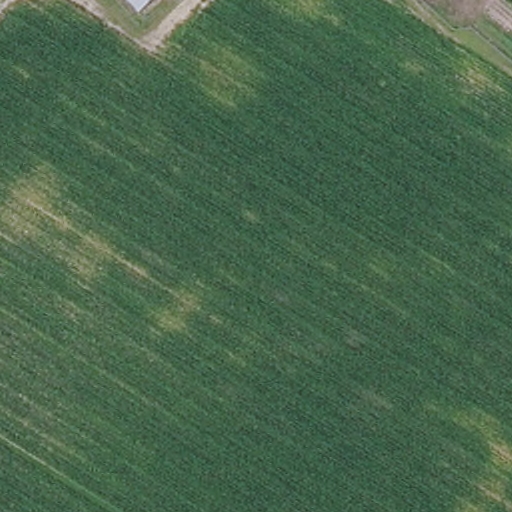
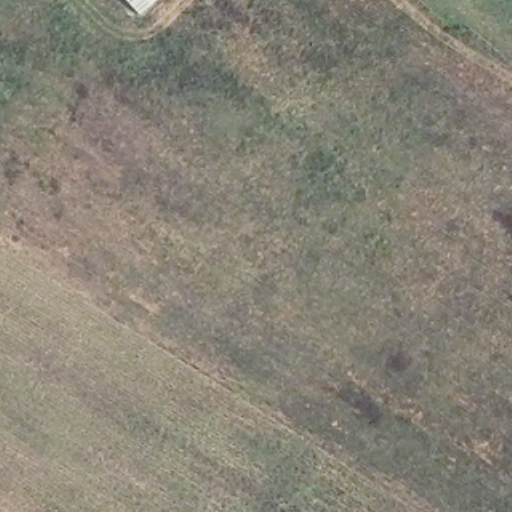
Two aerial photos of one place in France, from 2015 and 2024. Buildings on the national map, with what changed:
unchanged [(119,0),(154,0),(157,4),(158,5),(140,22),(139,20),(119,0)]
unchanged [(158,5),(157,4),(154,0),(163,0),(158,5)]

